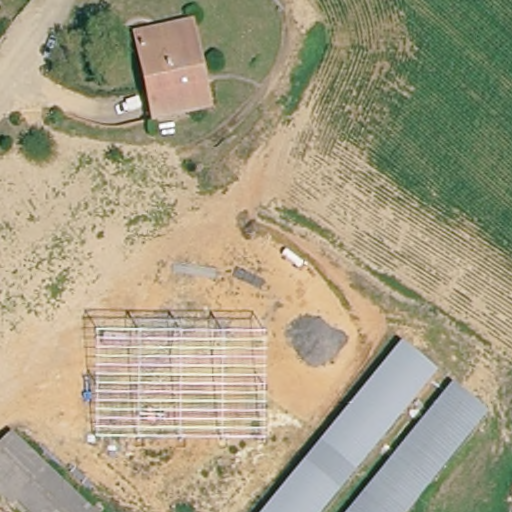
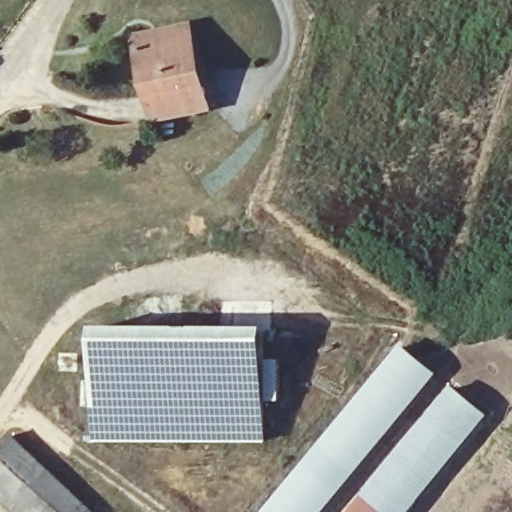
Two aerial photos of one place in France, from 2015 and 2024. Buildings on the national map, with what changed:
unchanged [(209,88),(197,89),(191,53),(164,57),(162,41),(201,35),(209,88)]
unchanged [(212,107),(154,116),(143,44),(162,41),(164,57),(191,53),(197,89),(209,88),(212,107)]
new [(95,442),(97,327),(266,328),(266,360),(280,358),(280,400),(266,401),(266,443),(95,442)]
unchanged [(322,512),(265,512),(407,357),(437,385),(322,512)]
unchanged [(404,512),(350,512),(452,401),(481,428),(404,512)]
unchanged [(0,491),(0,456),(17,438),(96,512),(22,512),(0,491)]

